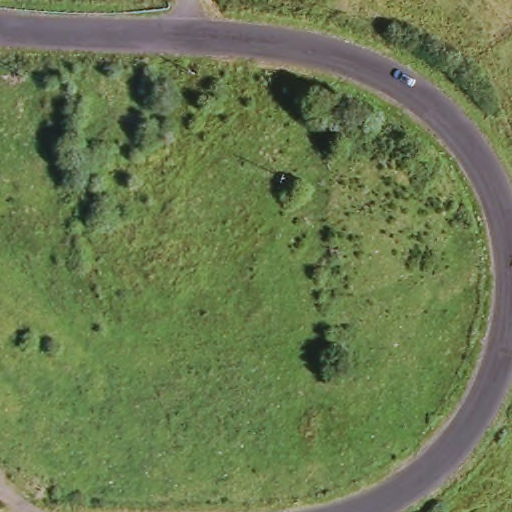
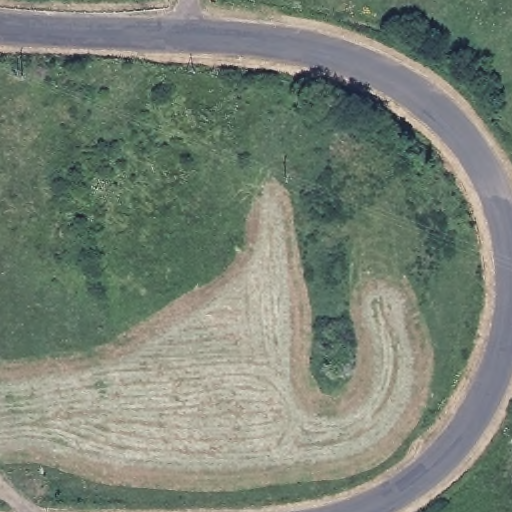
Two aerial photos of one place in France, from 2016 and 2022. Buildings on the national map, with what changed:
[]

